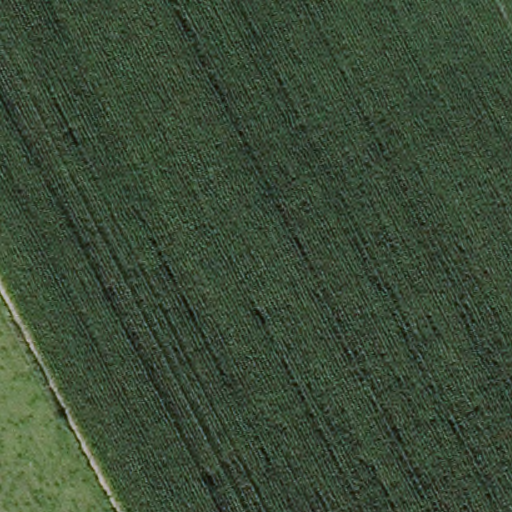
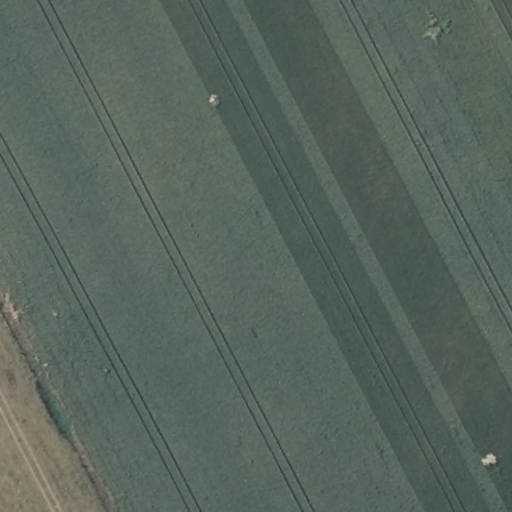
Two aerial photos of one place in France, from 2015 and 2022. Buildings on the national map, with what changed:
[]

